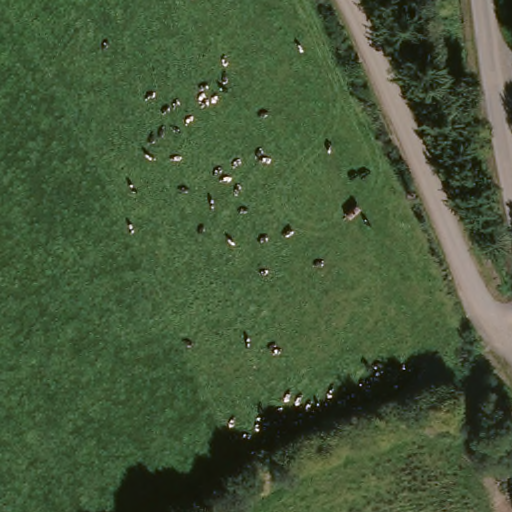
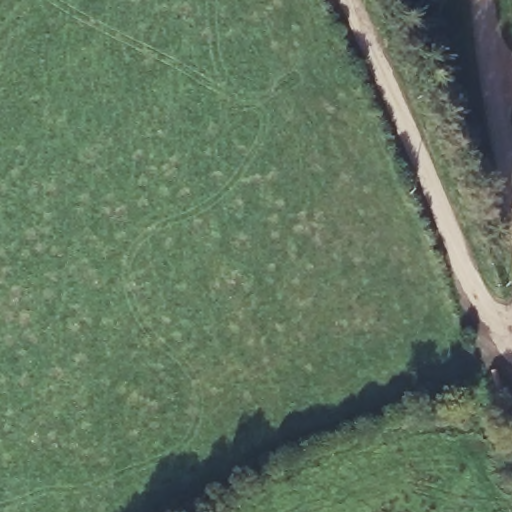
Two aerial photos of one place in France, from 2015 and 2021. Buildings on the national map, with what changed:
[]

